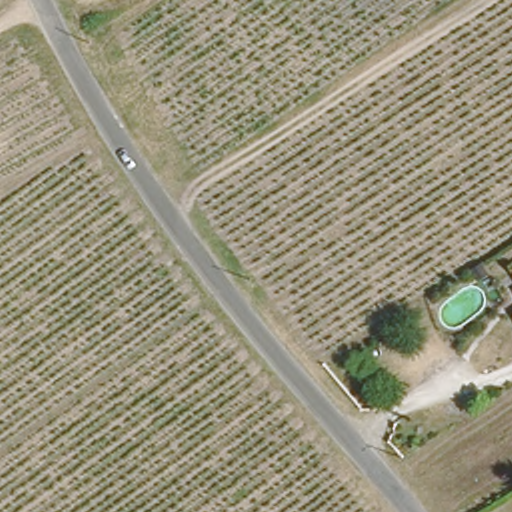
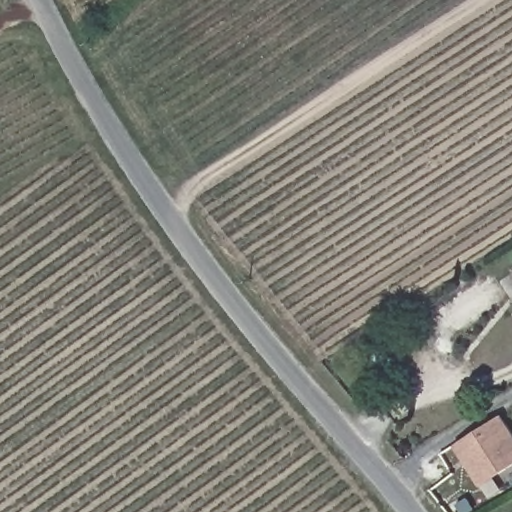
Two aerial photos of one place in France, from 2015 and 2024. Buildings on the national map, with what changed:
unchanged [(512,268),(512,275),(509,270),(512,268)]
unchanged [(512,313),(512,318),(510,315),(512,313)]
new [(512,436),(512,460),(476,482),(451,442),(496,412),(512,436)]

